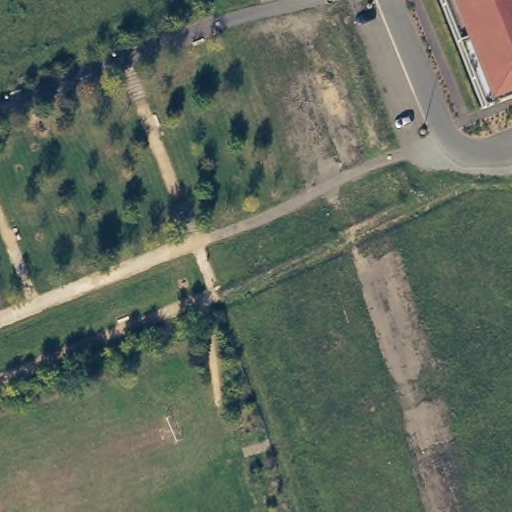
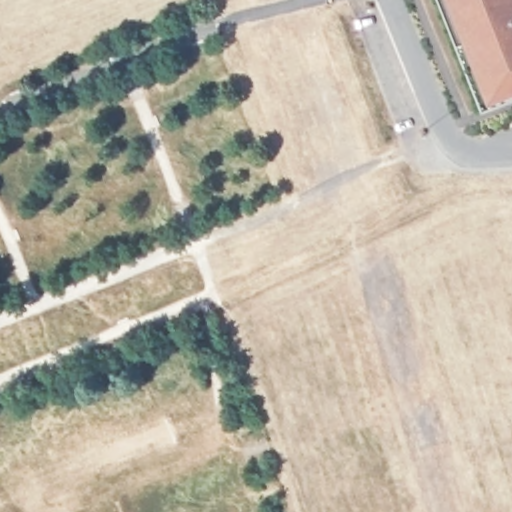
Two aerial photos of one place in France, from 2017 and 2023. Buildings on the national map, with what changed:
unchanged [(437,0),(512,0),(512,98),(480,111),(437,0)]

